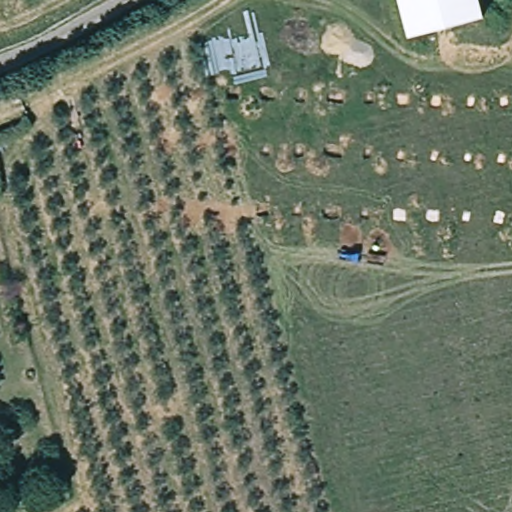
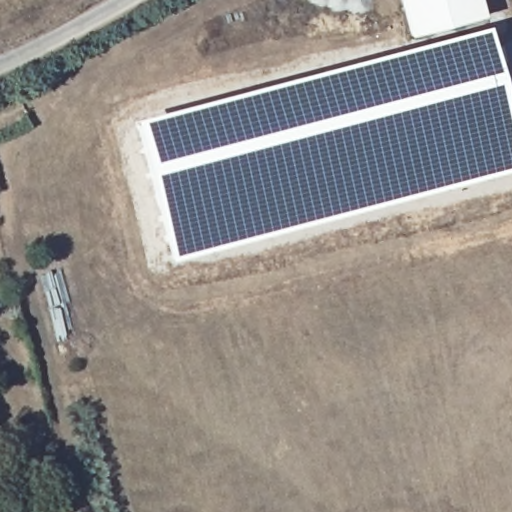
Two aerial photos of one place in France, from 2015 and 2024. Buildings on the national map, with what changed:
unchanged [(413,33),(404,0),(484,0),(487,13),(413,33)]
new [(173,259),(136,117),(491,23),(512,104),(512,169),(173,259)]

